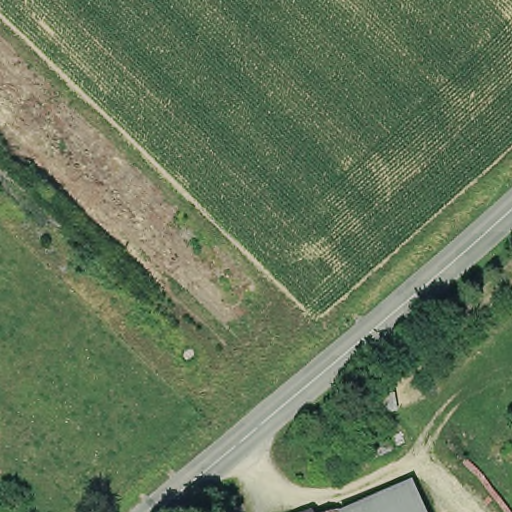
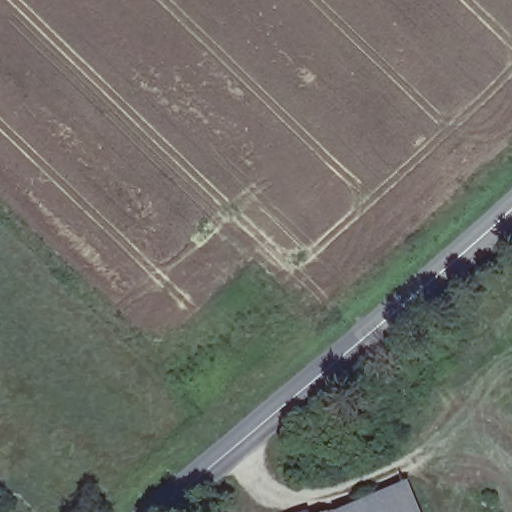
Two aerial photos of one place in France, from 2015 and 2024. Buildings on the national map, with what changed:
unchanged [(357,450),(366,456),(368,462),(367,468),(362,476),(355,479),(345,476),(341,472),(338,466),(339,460),(345,451),(352,449),(357,450)]
unchanged [(349,512),(367,505),(419,483),(430,512),(349,512)]

